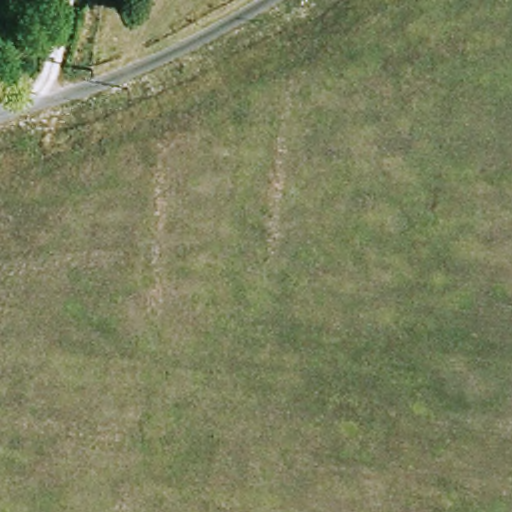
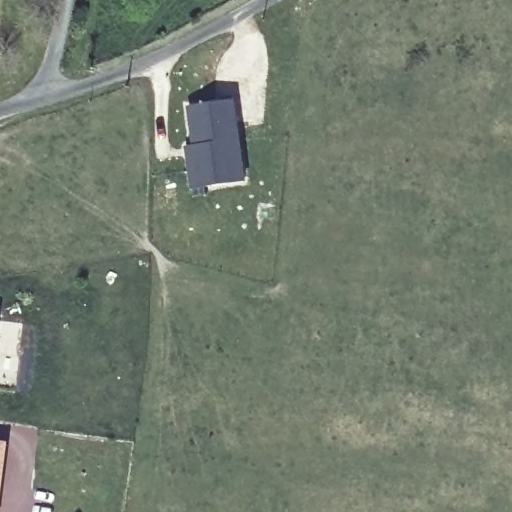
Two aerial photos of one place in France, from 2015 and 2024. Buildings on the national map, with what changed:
new [(192,148),(187,109),(235,101),(245,182),(191,190),(185,149),(192,148)]
unchanged [(0,308),(1,308),(0,314),(0,308)]
new [(0,442),(8,442),(0,502),(0,442)]

